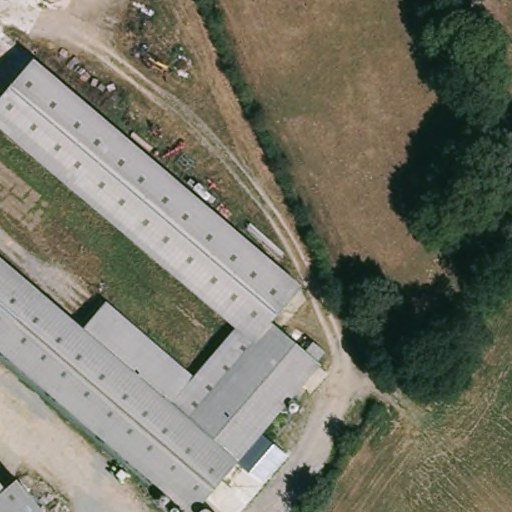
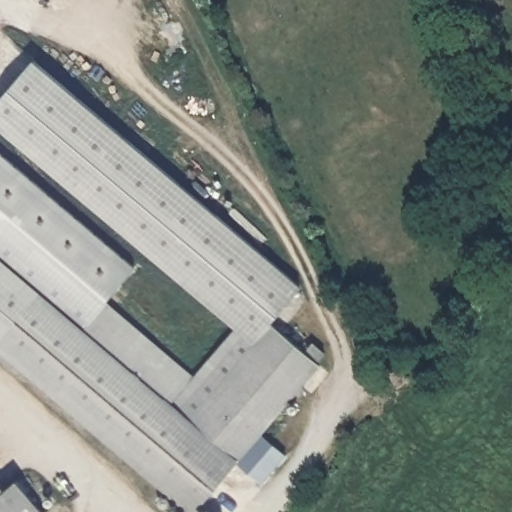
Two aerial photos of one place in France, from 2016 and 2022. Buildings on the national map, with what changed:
unchanged [(0,98),(35,59),(303,283),(271,322),(254,342),(0,128),(0,98)]
new [(106,302),(83,330),(40,292),(0,259),(0,152),(134,265),(106,302)]
unchanged [(0,339),(0,259),(40,292),(0,339)]
unchanged [(237,462),(194,512),(189,512),(0,350),(0,339),(40,292),(237,462)]
unchanged [(254,342),(190,417),(239,460),(237,462),(83,330),(106,302),(194,376),(236,327),(254,342)]
unchanged [(254,342),(271,322),(321,364),(239,460),(190,417),(254,342)]
unchanged [(0,512),(0,494),(17,480),(43,512),(0,512)]
unchanged [(0,483),(6,490),(0,494),(0,483)]

